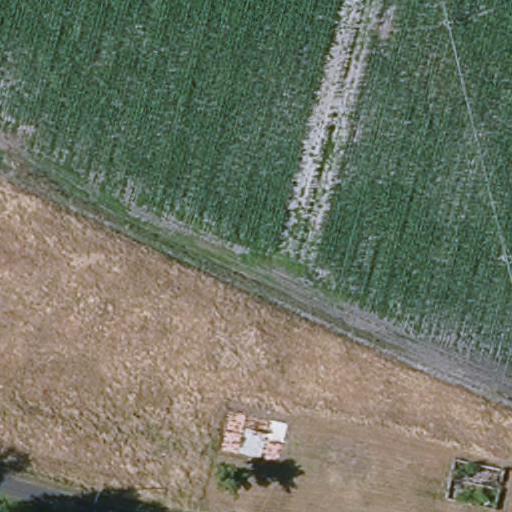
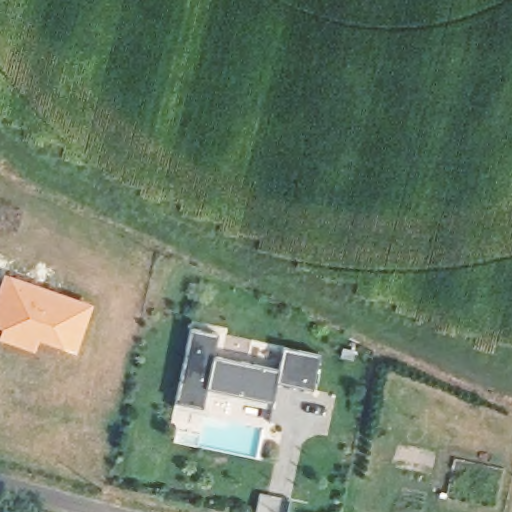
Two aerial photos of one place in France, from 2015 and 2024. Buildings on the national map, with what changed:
new [(3,272),(94,303),(76,352),(38,340),(34,351),(0,339),(0,332),(1,328),(0,328),(0,282),(3,272)]
new [(192,329),(220,335),(216,357),(281,370),(285,348),(322,355),(315,391),(278,383),(274,403),(273,409),(213,397),(210,416),(176,410),(177,405),(192,329)]
new [(345,350),(355,351),(354,360),(343,358),(345,350)]
demolished [(215,456),(220,417),(287,424),(279,470),(215,456)]

